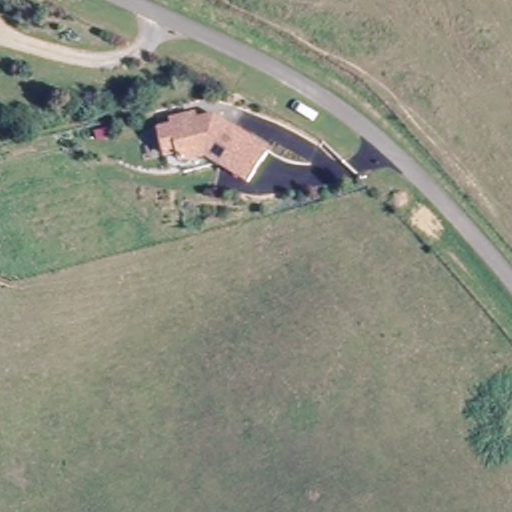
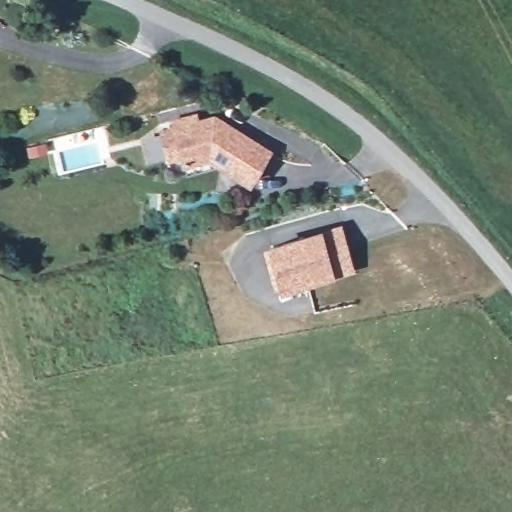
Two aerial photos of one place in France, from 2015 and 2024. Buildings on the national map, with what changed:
unchanged [(268,153),(250,184),(209,160),(185,167),(172,170),(162,135),(176,131),(174,124),(195,117),(197,125),(214,120),(268,153)]
new [(356,272),(334,279),(281,295),(277,286),(273,287),(263,248),(271,244),(323,231),(341,225),(356,272)]

